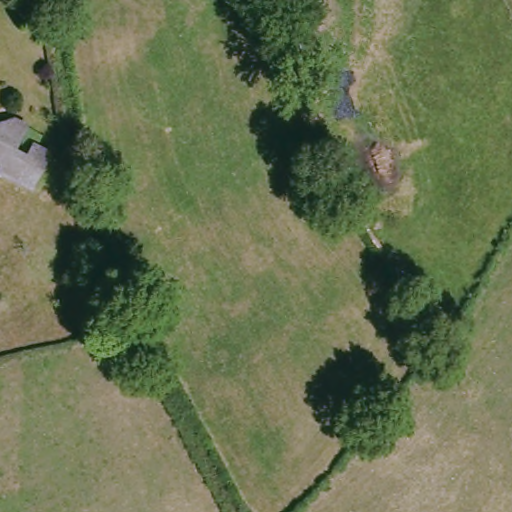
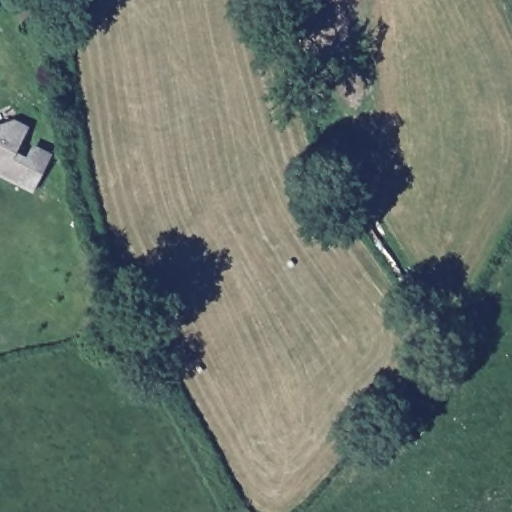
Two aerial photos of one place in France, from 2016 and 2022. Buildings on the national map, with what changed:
unchanged [(10,121),(0,141),(0,117),(10,121)]
unchanged [(11,148),(15,141),(23,140),(54,157),(36,193),(2,174),(8,163),(2,159),(0,160),(0,142),(11,148)]

